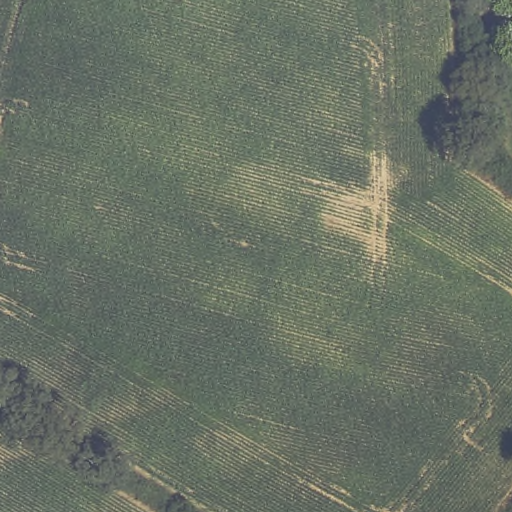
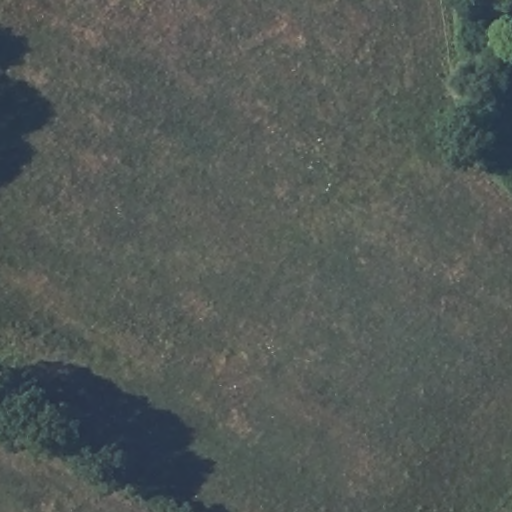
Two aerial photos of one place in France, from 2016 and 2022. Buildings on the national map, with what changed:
[]

